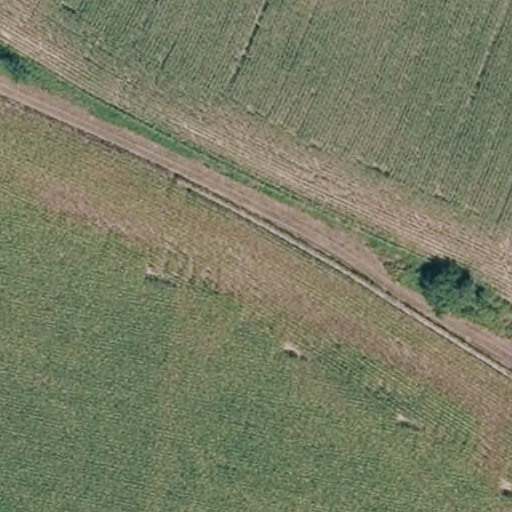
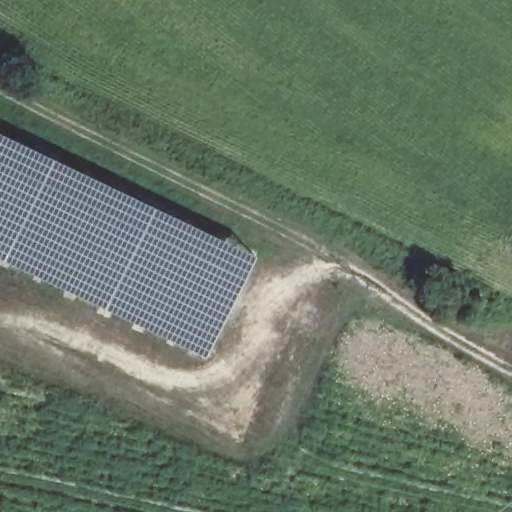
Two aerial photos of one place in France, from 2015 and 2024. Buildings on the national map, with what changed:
new [(0,131),(256,255),(207,357),(0,258),(0,131)]

